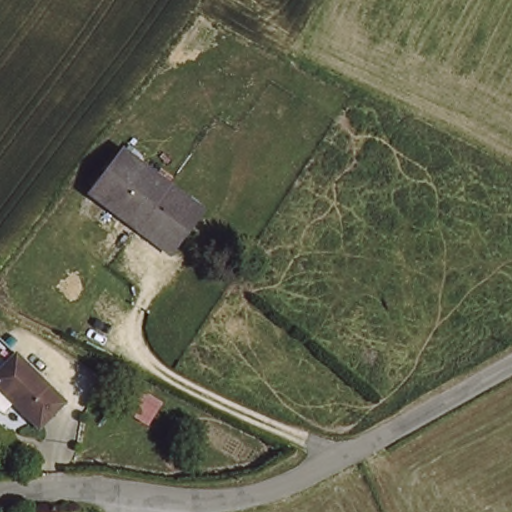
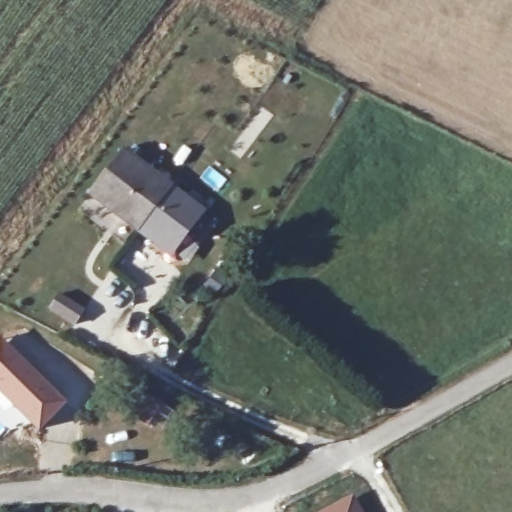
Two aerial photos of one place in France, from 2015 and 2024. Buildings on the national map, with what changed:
unchanged [(183,163),(170,182),(195,202),(167,242),(135,218),(130,223),(88,192),(120,145),(140,159),(153,141),(183,163)]
unchanged [(47,423),(31,410),(12,425),(0,412),(0,374),(28,352),(77,399),(47,423)]
new [(353,494),(362,512),(320,512),(353,494)]

